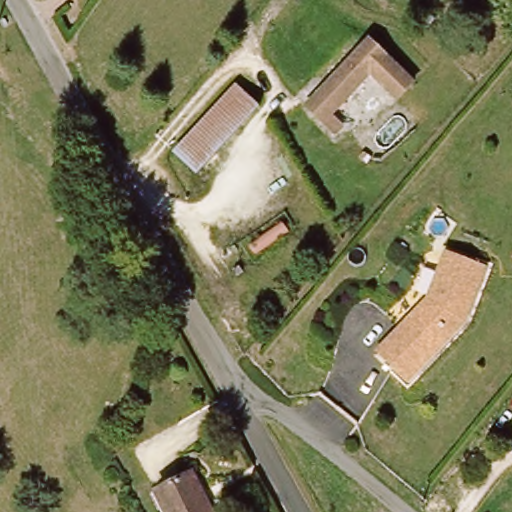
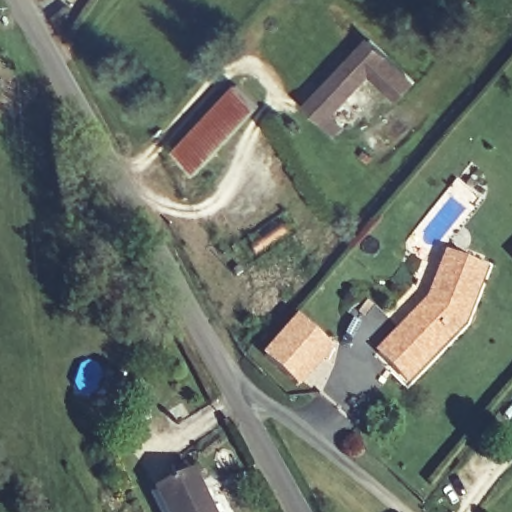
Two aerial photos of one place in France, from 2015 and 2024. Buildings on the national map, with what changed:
unchanged [(400,102),(372,75),(332,117),(344,129),(337,136),(309,109),(373,42),(416,85),(400,102)]
unchanged [(213,170),(191,150),(246,81),(269,100),(213,170)]
unchanged [(482,321),(425,381),(396,353),(444,302),(464,253),(502,266),(482,321)]
new [(298,316),(335,349),(300,388),(263,355),(298,316)]
unchanged [(207,470),(228,512),(182,512),(170,488),(207,470)]

